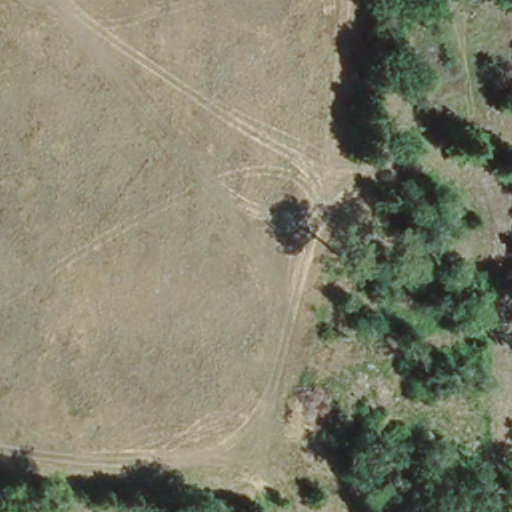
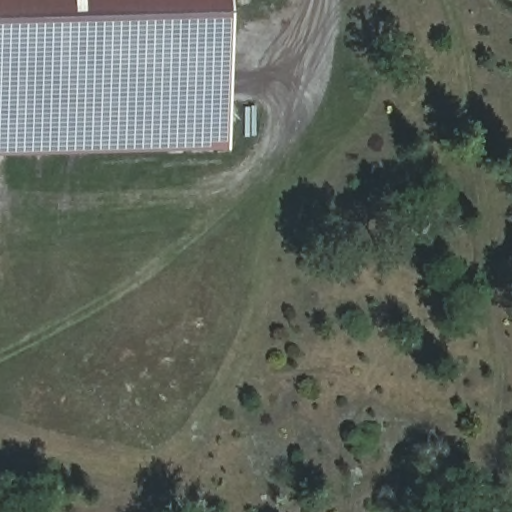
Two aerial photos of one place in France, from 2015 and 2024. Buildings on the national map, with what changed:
new [(227,150),(0,158),(0,0),(223,0),(227,150)]

